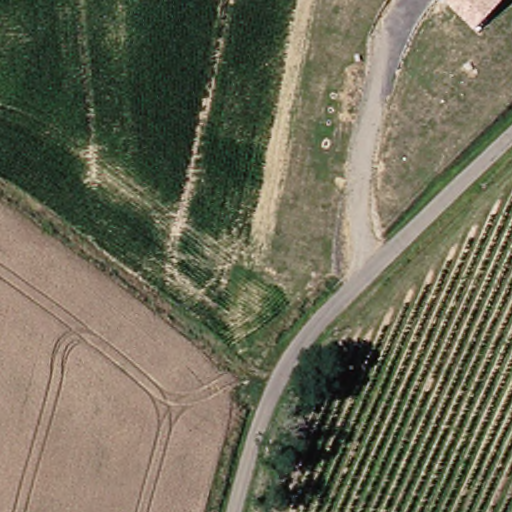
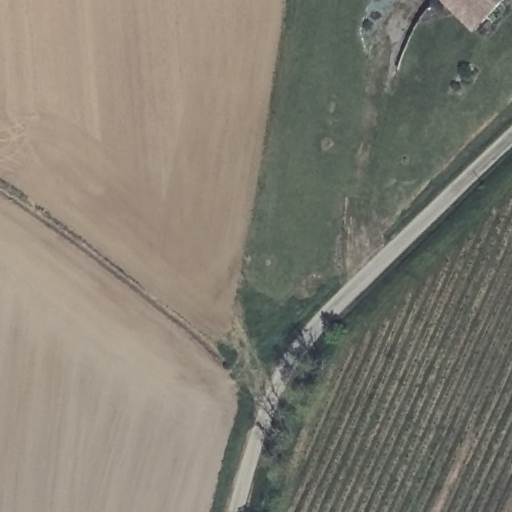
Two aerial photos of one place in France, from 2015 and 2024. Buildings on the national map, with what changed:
unchanged [(468,0),(499,0),(484,15),(468,0)]

